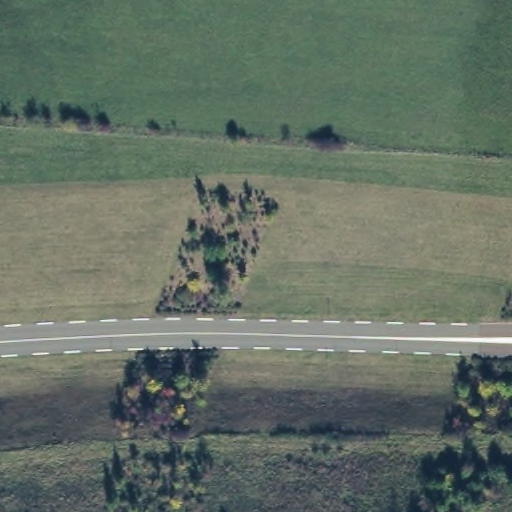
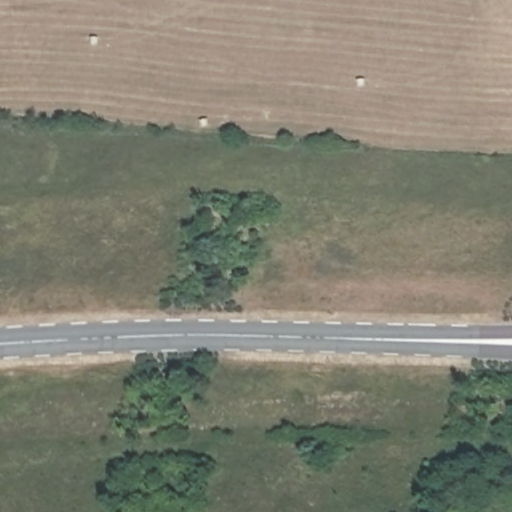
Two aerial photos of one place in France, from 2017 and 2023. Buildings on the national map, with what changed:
[]

